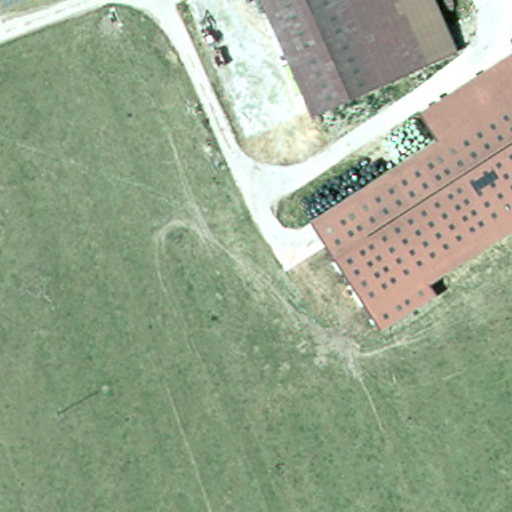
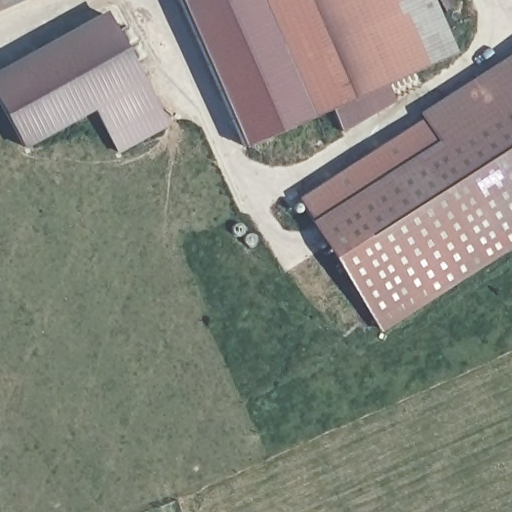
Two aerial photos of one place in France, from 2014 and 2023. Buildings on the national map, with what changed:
new [(245,147),(181,0),(259,0),(310,117),(245,147)]
unchanged [(428,0),(451,54),(310,117),(259,0),(428,0)]
new [(93,110),(24,149),(0,106),(0,67),(106,9),(170,124),(117,153),(93,110)]
unchanged [(417,113),(512,51),(512,230),(430,285),(437,295),(381,328),(310,220),(435,141),(417,113)]
new [(329,109),(386,83),(394,102),(340,133),(329,109)]
new [(298,199),(421,119),(435,141),(310,220),(298,199)]

